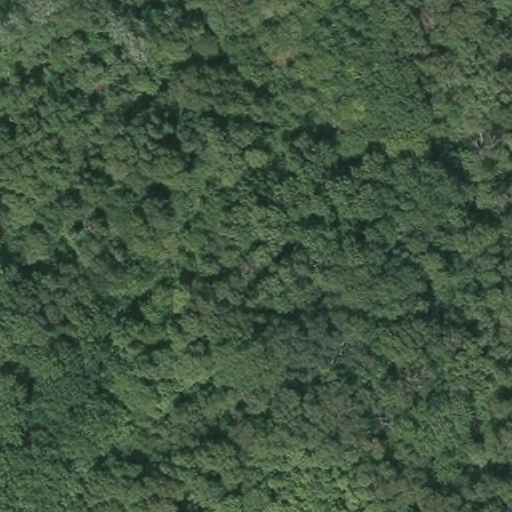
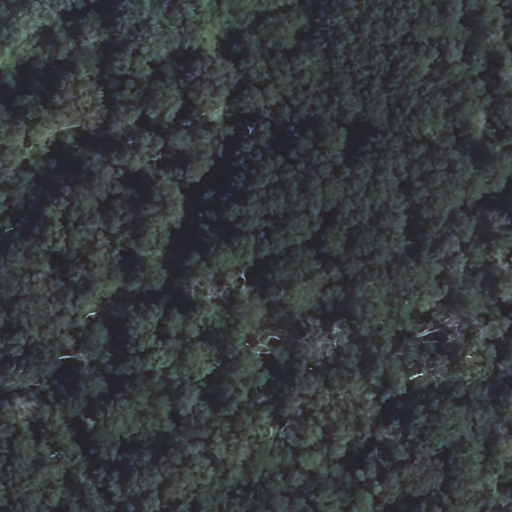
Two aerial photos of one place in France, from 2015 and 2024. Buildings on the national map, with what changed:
[]

